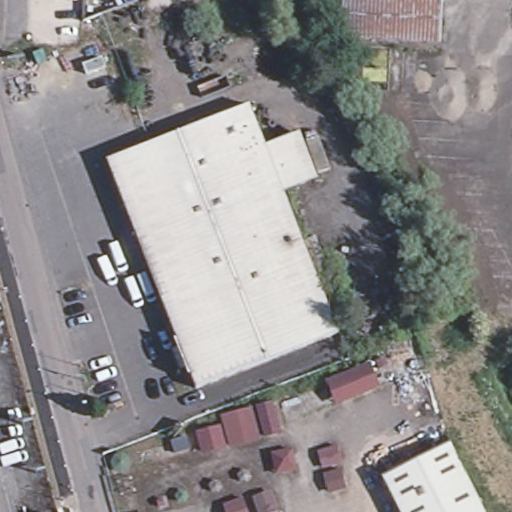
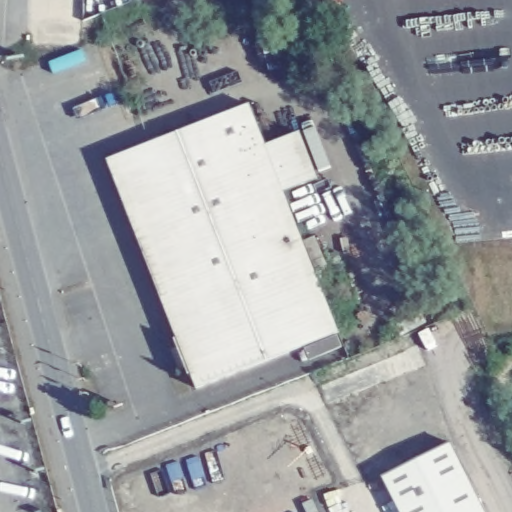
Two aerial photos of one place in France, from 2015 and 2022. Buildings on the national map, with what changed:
unchanged [(151,4),(151,0),(224,0),(151,14),(151,4)]
demolished [(443,5),(442,49),(343,45),(345,1),(443,5)]
unchanged [(111,161),(253,107),(267,144),(124,196),(111,161)]
unchanged [(180,346),(138,234),(136,229),(124,196),(267,144),(269,149),(302,135),(315,171),(320,180),(286,194),(323,292),(180,346)]
unchanged [(323,292),(340,334),(197,389),(180,346),(323,292)]
unchanged [(403,348),(414,371),(300,420),(289,399),(403,348)]
unchanged [(385,479),(454,444),(487,512),(402,512),(385,479)]

